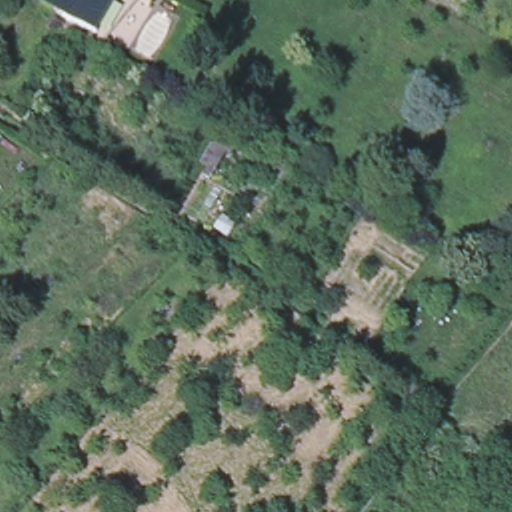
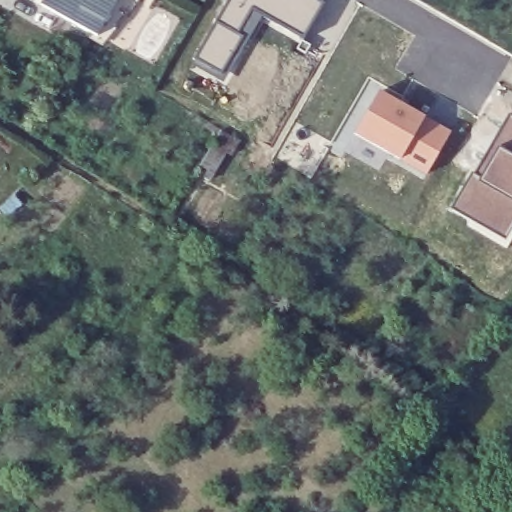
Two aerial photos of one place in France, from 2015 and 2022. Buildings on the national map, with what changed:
unchanged [(100,36),(97,39),(41,6),(42,3),(49,7),(52,0),(114,0),(95,34),(100,36)]
unchanged [(95,34),(114,0),(138,0),(141,2),(107,44),(97,39),(100,36),(95,34)]
unchanged [(138,0),(142,0),(141,2),(138,0)]
new [(306,0),(321,9),(302,41),(255,13),(252,17),(249,16),(237,35),(243,38),(221,76),(192,60),(228,0),(306,0)]
new [(378,92),(450,134),(426,175),(354,134),(378,92)]
new [(512,115),(512,226),(506,237),(452,207),(472,171),(476,173),(510,114),(512,115)]
unchanged [(215,171),(201,162),(220,131),(234,139),(215,171)]
unchanged [(401,315),(410,322),(402,331),(394,323),(401,315)]

